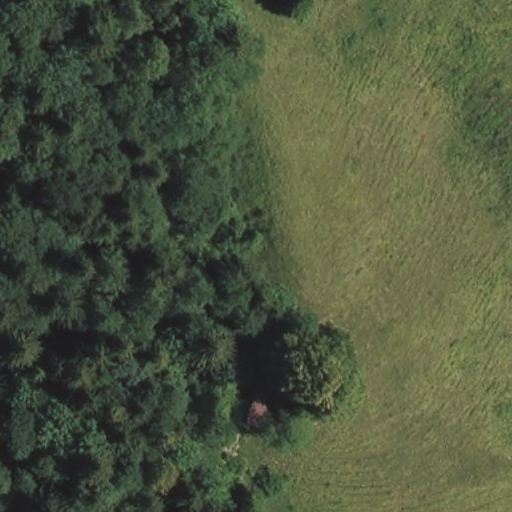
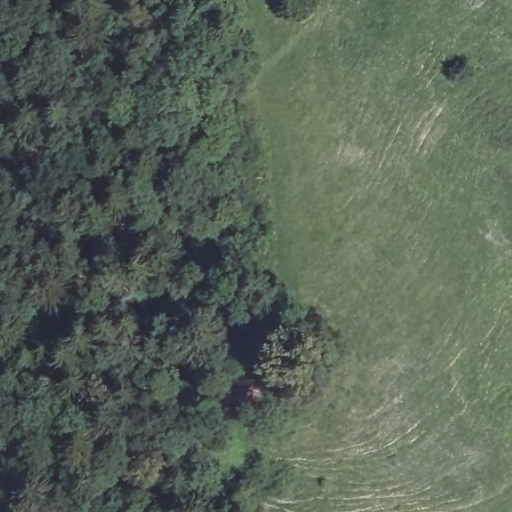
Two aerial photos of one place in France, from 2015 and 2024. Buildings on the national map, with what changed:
unchanged [(277,355),(259,418),(227,407),(245,345),(277,355)]

